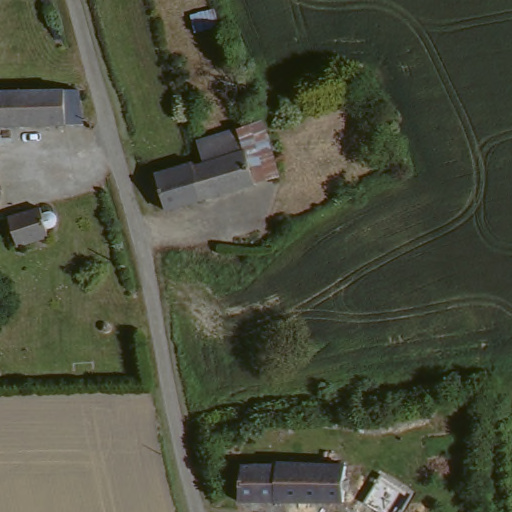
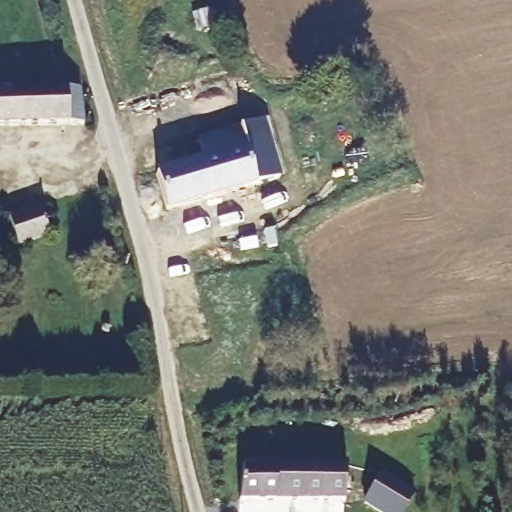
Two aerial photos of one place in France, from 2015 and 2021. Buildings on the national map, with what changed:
unchanged [(0,97),(54,96),(74,96),(78,129),(0,131),(0,97)]
unchanged [(234,192),(218,137),(239,131),(250,127),(260,159),(249,162),(257,186),(234,192)]
unchanged [(134,182),(167,172),(168,177),(179,173),(174,150),(178,149),(179,148),(218,137),(234,192),(194,204),(179,209),(147,217),(134,182)]
unchanged [(14,247),(4,220),(37,209),(39,215),(44,212),(46,212),(49,214),(51,217),(53,220),(52,222),(50,225),(48,227),(43,229),(45,237),(14,247)]
unchanged [(240,502),(241,467),(277,467),(279,462),(348,468),(346,505),(240,502)]
new [(381,471),(417,493),(405,512),(376,512),(361,503),(381,471)]

